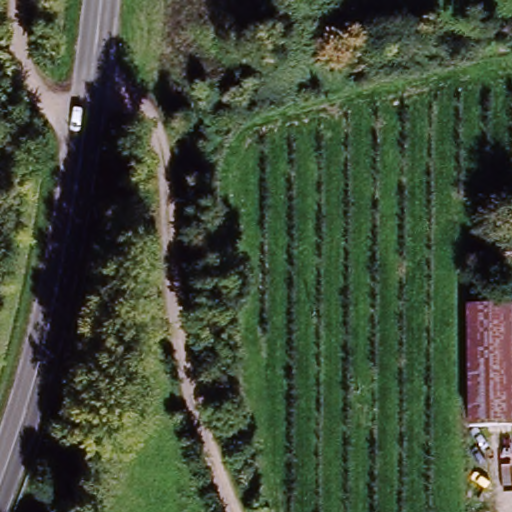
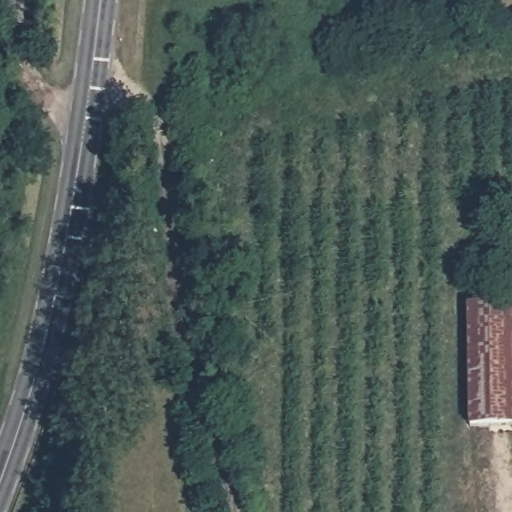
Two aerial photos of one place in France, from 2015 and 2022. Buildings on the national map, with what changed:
unchanged [(460,323),(512,312),(512,434),(485,440),(460,323)]

